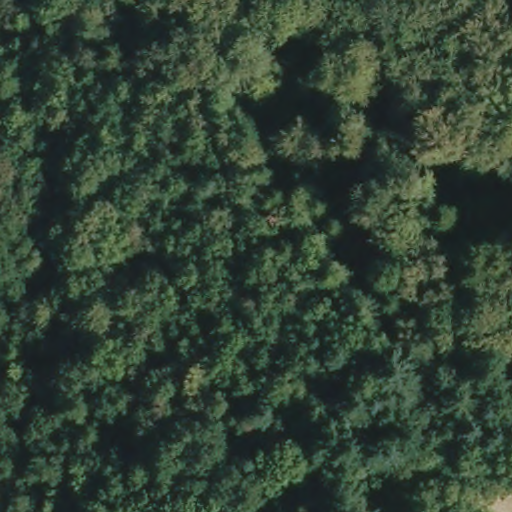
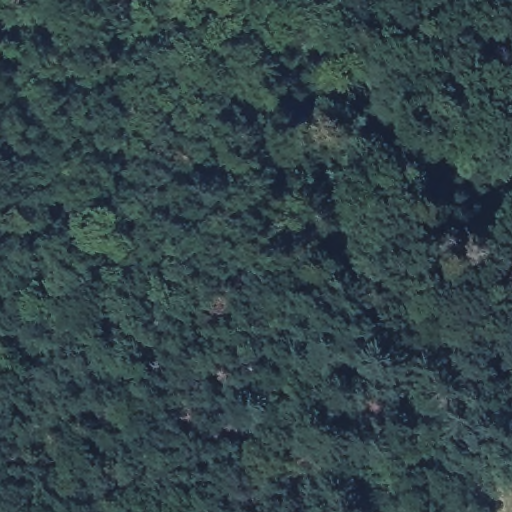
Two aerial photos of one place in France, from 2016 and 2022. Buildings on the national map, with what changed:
[]

